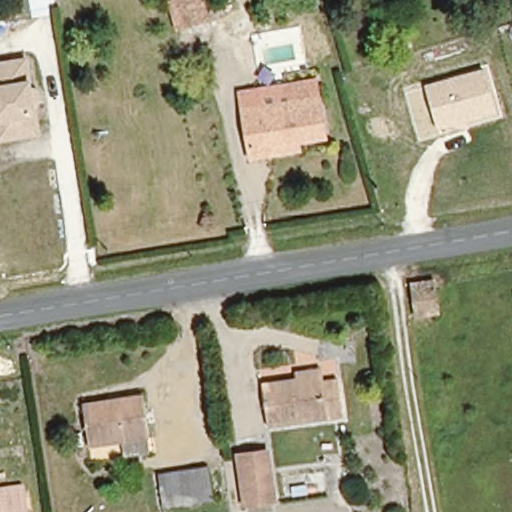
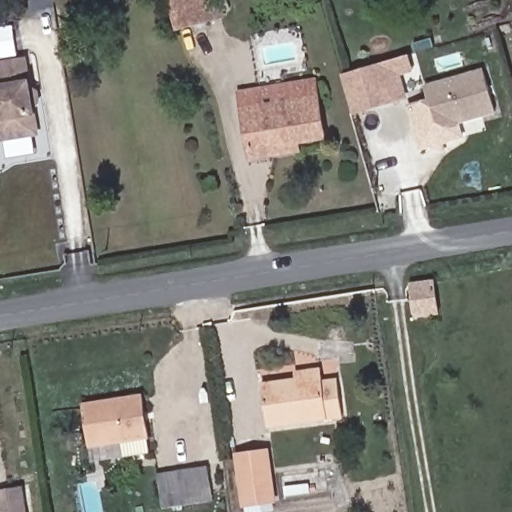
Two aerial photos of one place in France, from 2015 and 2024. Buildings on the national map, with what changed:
unchanged [(181,28),(172,0),(207,0),(213,18),(181,28)]
new [(415,73),(403,77),(409,99),(353,114),(343,76),(409,55),(415,73)]
unchanged [(29,57),(40,135),(0,143),(0,62),(29,57)]
unchanged [(468,130),(451,125),(436,129),(423,85),(483,68),(496,114),(466,122),(468,130)]
unchanged [(286,154),(247,161),(235,98),(289,88),(314,83),(316,97),(324,136),(295,141),(297,152),(286,154)]
unchanged [(433,284),(435,314),(413,316),(411,285),(433,284)]
unchanged [(336,382),(341,416),(266,427),(260,387),(292,382),(291,372),(317,368),(318,379),(319,384),(336,382)]
unchanged [(80,414),(137,404),(144,445),(87,455),(80,414)]
unchanged [(275,508),(253,512),(243,512),(234,459),(266,453),(275,508)]
unchanged [(210,466),(215,494),(163,503),(158,474),(210,466)]
unchanged [(21,482),(25,512),(0,512),(0,485),(21,482)]

